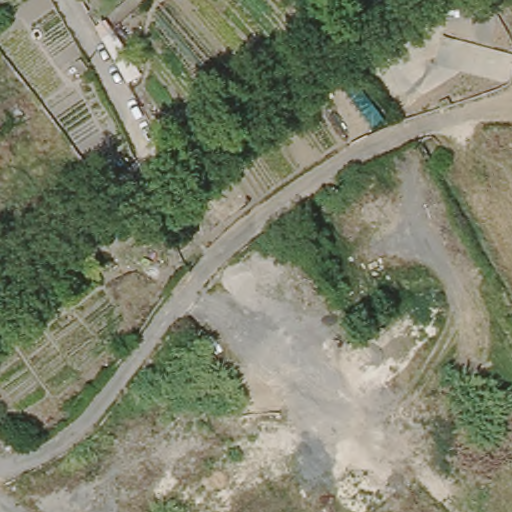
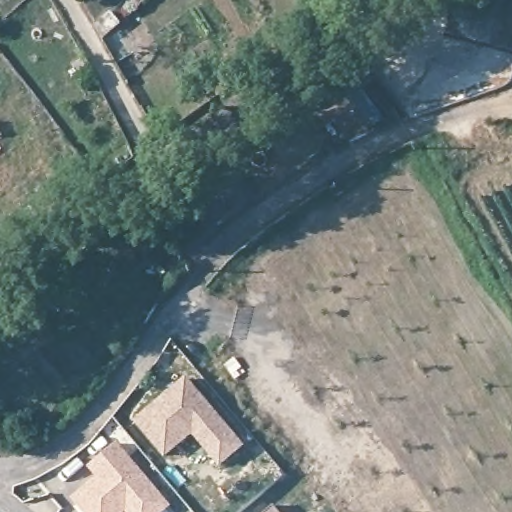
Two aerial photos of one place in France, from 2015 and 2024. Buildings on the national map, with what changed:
unchanged [(31,281),(13,294),(5,285),(22,272),(31,281)]
new [(188,381),(243,449),(220,468),(193,434),(165,457),(137,421),(188,381)]
new [(87,467),(116,441),(170,507),(164,512),(82,512),(70,499),(95,478),(87,467)]
new [(280,512),(263,512),(272,504),(280,512)]

